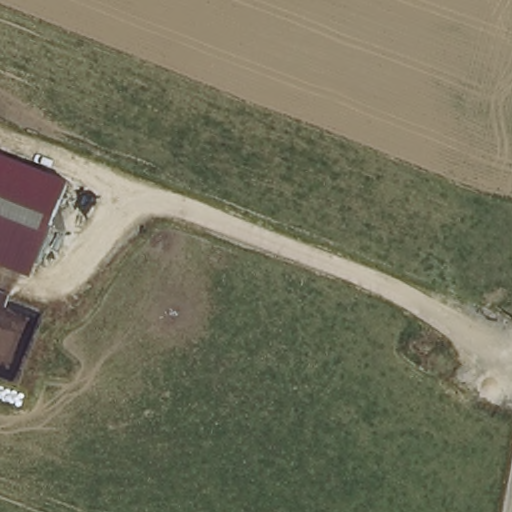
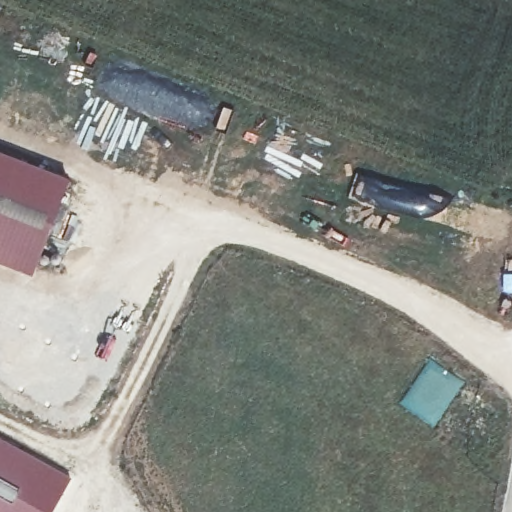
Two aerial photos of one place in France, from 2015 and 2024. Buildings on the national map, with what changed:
unchanged [(68,181),(31,277),(0,265),(0,155),(68,181)]
new [(70,479),(51,512),(0,512),(0,439),(70,479)]

